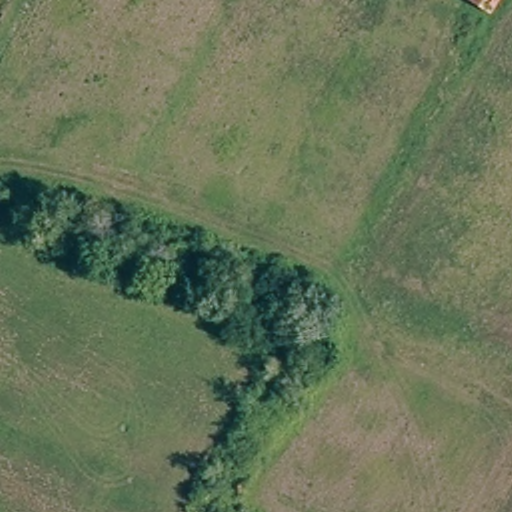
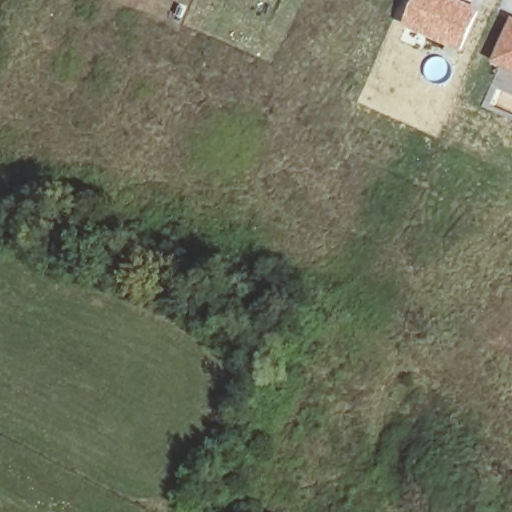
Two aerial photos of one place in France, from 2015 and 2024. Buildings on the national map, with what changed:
new [(481,11),(462,54),(403,27),(415,0),(457,0),(481,11)]
unchanged [(494,9),(481,0),(499,0),(494,9)]
new [(512,19),(512,71),(493,63),(512,19)]

